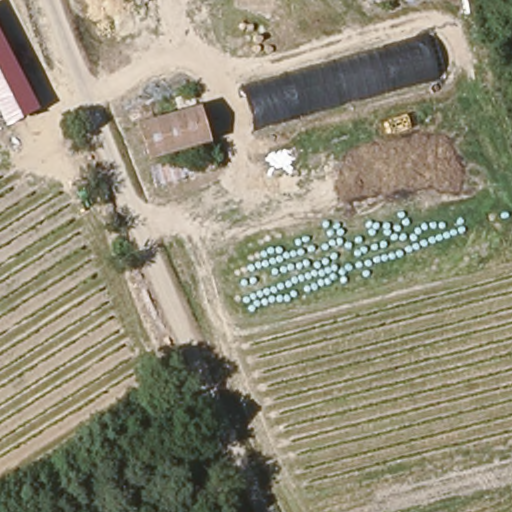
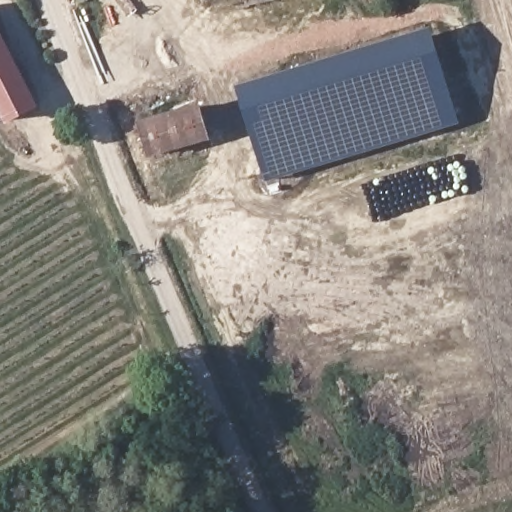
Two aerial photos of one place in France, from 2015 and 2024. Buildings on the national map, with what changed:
new [(430,28),(459,123),(265,182),(237,85),(430,28)]
demolished [(430,35),(446,78),(258,134),(245,92),(430,35)]
unchanged [(0,107),(0,46),(34,111),(9,124),(0,107)]
unchanged [(211,142),(158,160),(145,131),(202,112),(211,142)]
demolished [(268,138),(307,128),(313,145),(273,155),(268,138)]
demolished [(160,188),(150,169),(152,168),(174,163),(214,153),(221,174),(160,188)]

